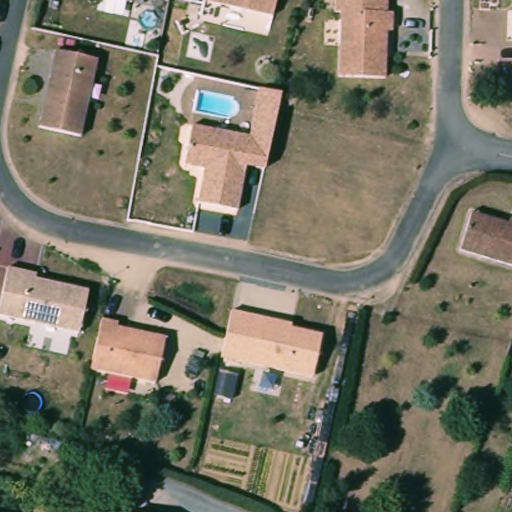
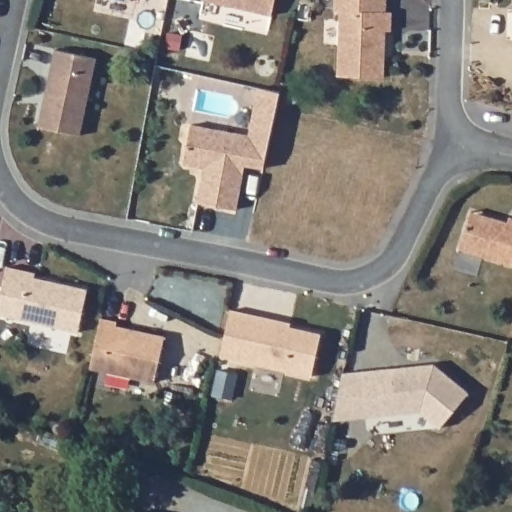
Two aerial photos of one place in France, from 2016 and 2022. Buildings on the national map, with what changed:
unchanged [(219,0),(279,0),(276,13),(219,0)]
unchanged [(397,13),(396,31),(385,30),(384,55),(389,55),(388,77),(342,75),(345,10),(397,13)]
unchanged [(60,47),(101,56),(84,134),(43,125),(49,99),(52,86),(60,47)]
unchanged [(282,90),(266,169),(247,165),(238,211),(196,203),(203,167),(184,164),(192,124),(248,134),(257,86),(282,90)]
unchanged [(512,222),(512,267),(462,251),(472,219),(474,214),(493,220),(511,225),(512,222)]
unchanged [(83,327),(2,309),(13,262),(34,267),(42,269),(41,273),(92,285),(83,327)]
unchanged [(232,308),(265,316),(292,323),(291,327),(322,335),(312,377),(222,355),(229,323),(232,308)]
unchanged [(121,317),(120,322),(168,333),(158,379),(94,364),(101,335),(105,314),(121,317)]
new [(421,411),(333,421),(344,373),(435,363),(470,393),(441,428),(421,411)]
unchanged [(130,487),(139,490),(132,512),(121,512),(130,487)]

